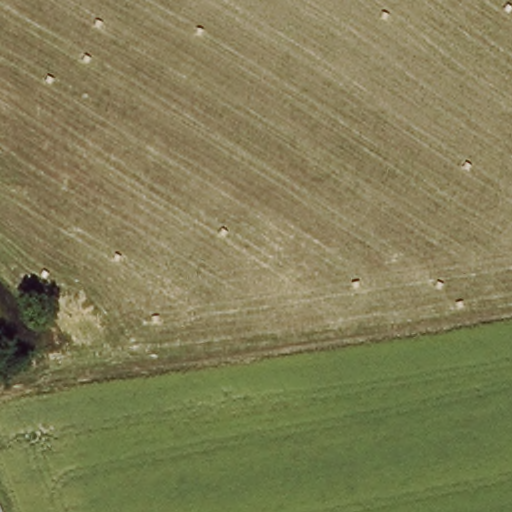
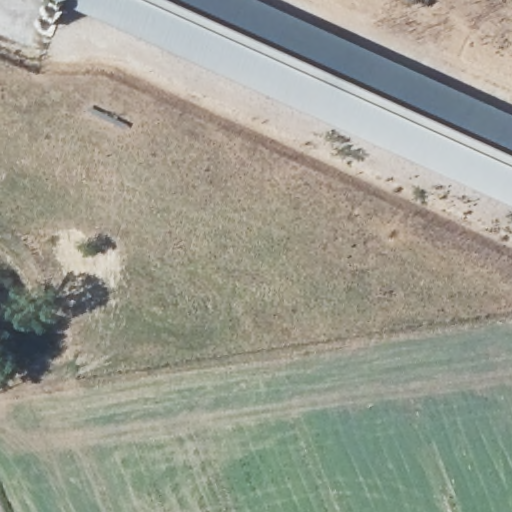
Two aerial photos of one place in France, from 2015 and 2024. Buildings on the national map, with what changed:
new [(512,204),(52,0),(255,0),(512,116),(512,204)]

